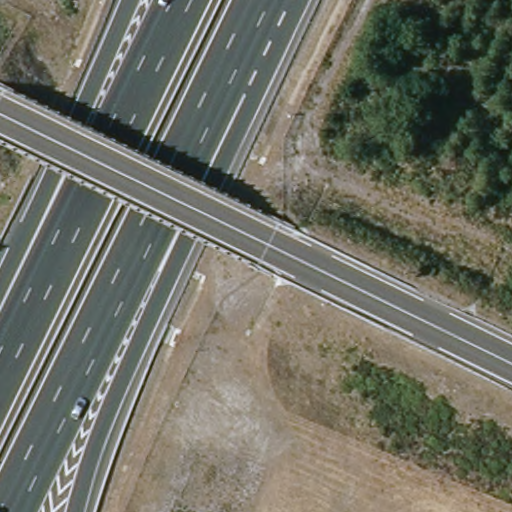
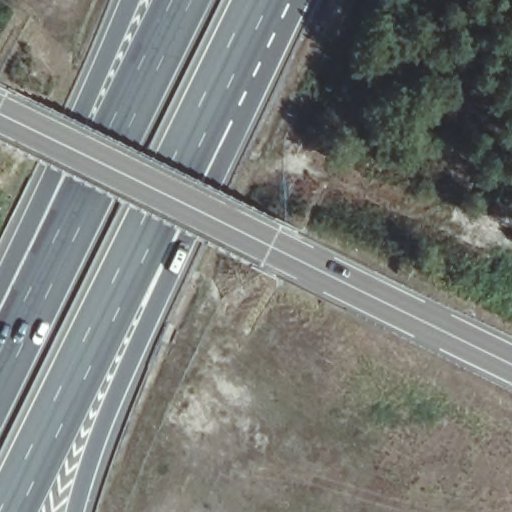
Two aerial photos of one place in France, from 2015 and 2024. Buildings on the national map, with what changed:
[]

